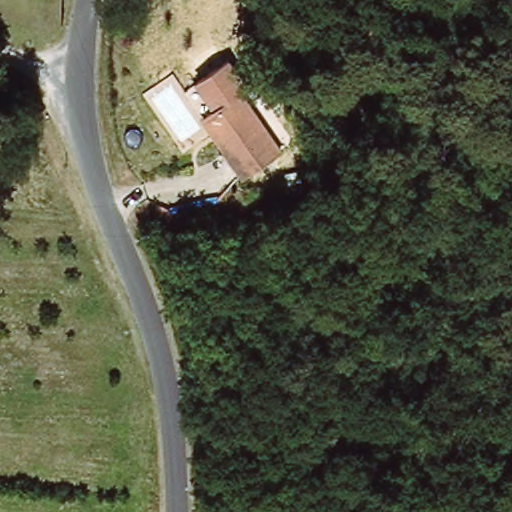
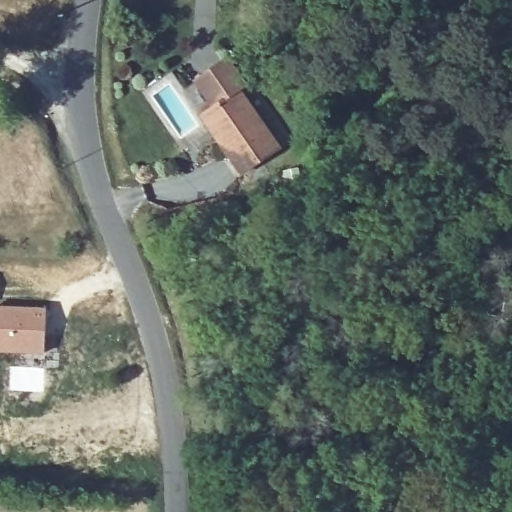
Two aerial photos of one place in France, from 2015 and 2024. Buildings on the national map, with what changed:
unchanged [(219,112),(196,81),(234,55),(255,86),(242,95),(219,112)]
unchanged [(283,152),(242,182),(222,153),(201,124),(211,118),(242,95),(283,152)]
new [(45,309),(44,355),(0,353),(0,308),(45,309)]

